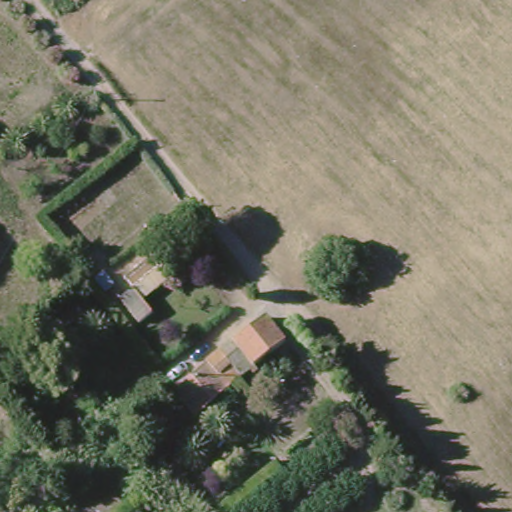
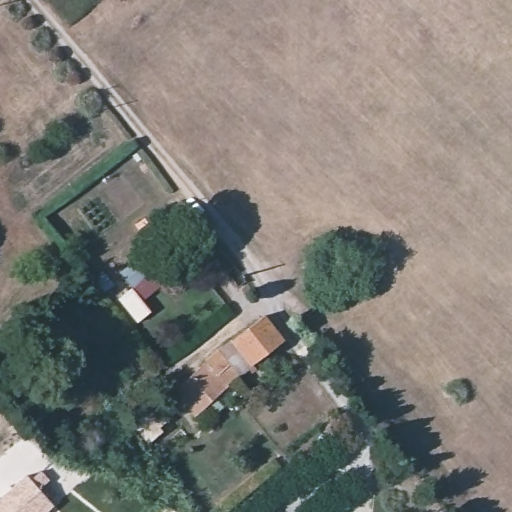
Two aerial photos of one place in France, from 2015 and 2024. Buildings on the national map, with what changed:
unchanged [(145,253),(165,278),(139,302),(148,314),(135,323),(104,284),(145,253)]
unchanged [(286,346),(255,369),(236,345),(266,321),(286,346)]
unchanged [(60,322),(85,357),(66,369),(40,339),(60,322)]
unchanged [(227,393),(195,421),(174,398),(208,369),(227,393)]
new [(31,479),(42,471),(51,480),(40,490),(55,505),(47,512),(0,512),(0,498),(26,474),(31,479)]
demolished [(27,512),(0,512),(38,482),(48,495),(27,512)]

